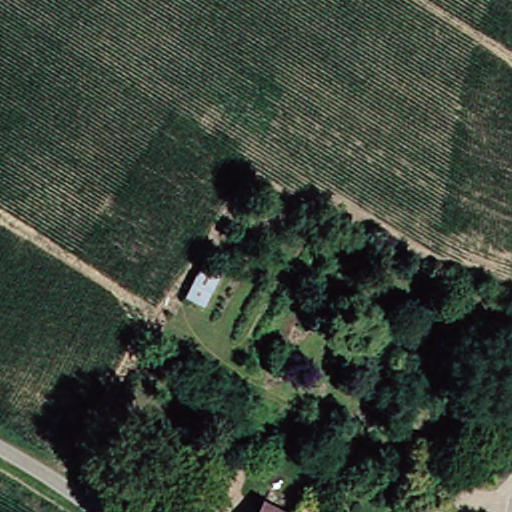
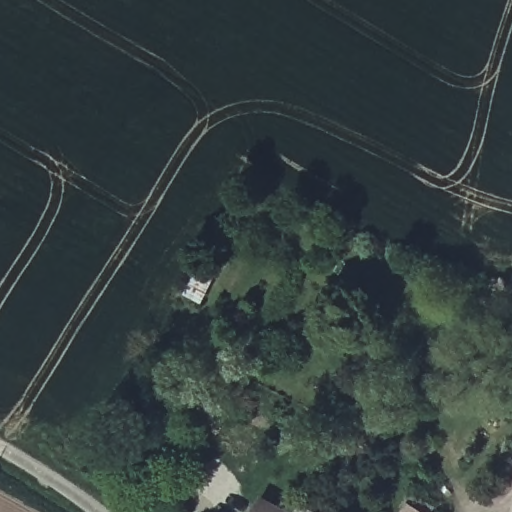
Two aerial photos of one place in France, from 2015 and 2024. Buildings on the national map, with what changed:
unchanged [(215,261),(195,295),(180,287),(199,252),(215,261)]
unchanged [(286,512),(249,512),(257,497),(286,512)]
unchanged [(311,512),(292,512),(295,505),(311,512)]

